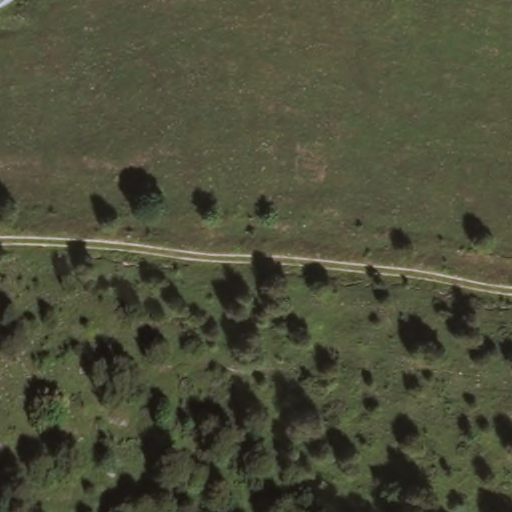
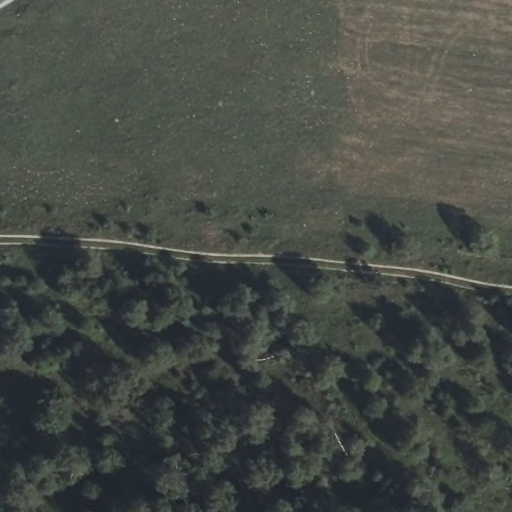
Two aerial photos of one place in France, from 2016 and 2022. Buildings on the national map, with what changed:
[]

